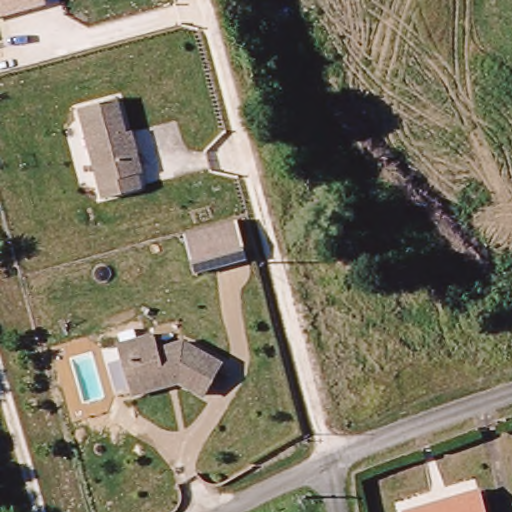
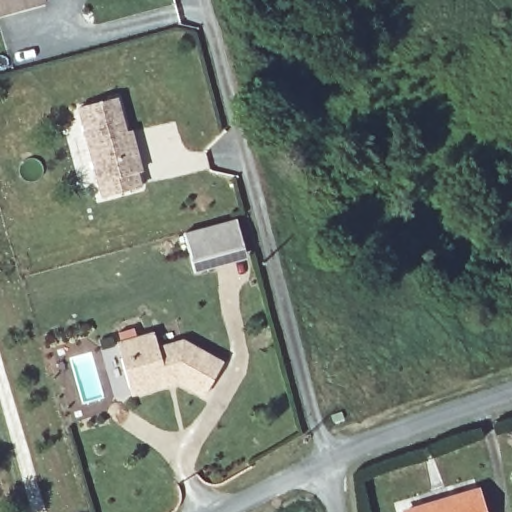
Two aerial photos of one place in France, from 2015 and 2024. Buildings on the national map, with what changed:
unchanged [(45,3),(0,15),(0,0),(44,0),(45,3)]
unchanged [(134,153),(140,171),(135,173),(139,187),(104,198),(84,134),(85,131),(78,109),(114,98),(130,153),(134,153)]
unchanged [(199,275),(186,237),(240,222),(248,249),(216,259),(219,269),(199,275)]
unchanged [(207,394),(175,376),(166,378),(168,382),(135,393),(119,343),(154,333),(159,346),(185,339),(224,360),(207,394)]
unchanged [(479,512),(403,512),(472,490),(479,512)]

